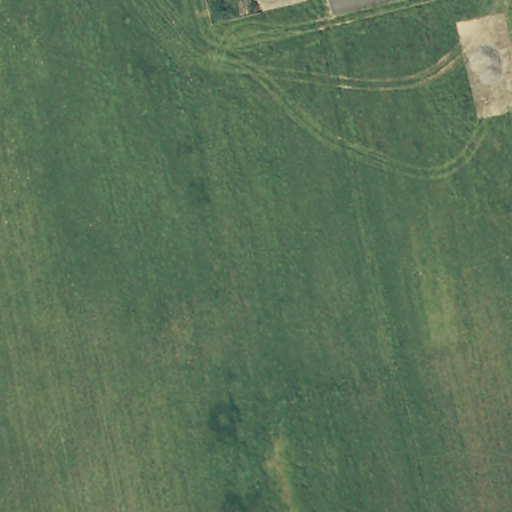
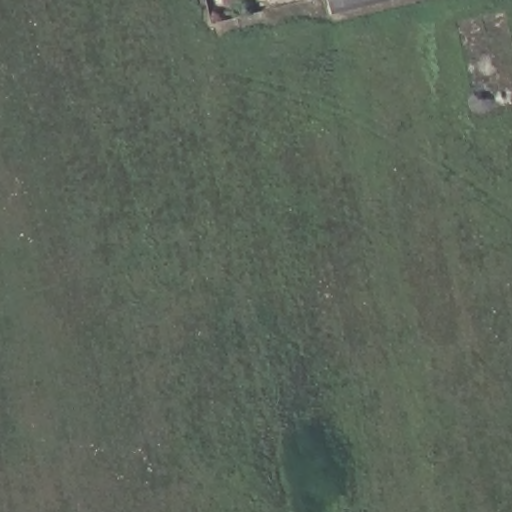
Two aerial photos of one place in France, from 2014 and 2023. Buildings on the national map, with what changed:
unchanged [(331,12),(328,0),(383,0),(331,12)]

